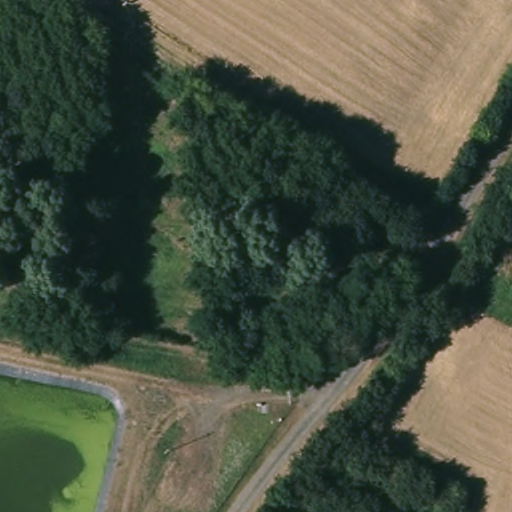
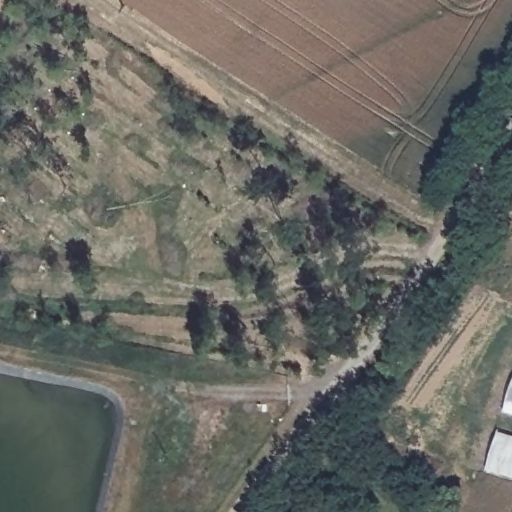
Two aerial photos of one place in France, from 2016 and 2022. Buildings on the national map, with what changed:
new [(505,410),(512,385),(512,412),(505,410)]
new [(498,430),(512,434),(512,476),(487,468),(498,430)]

